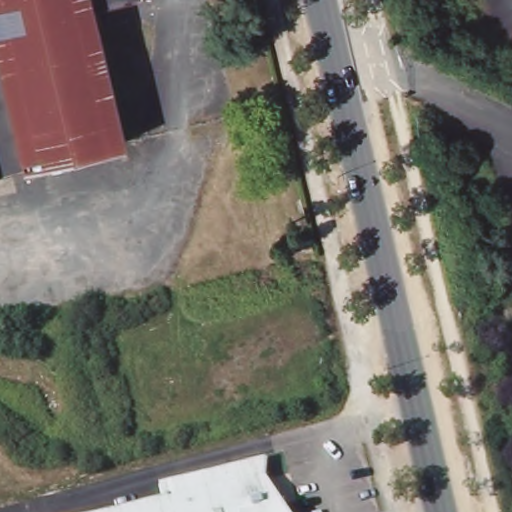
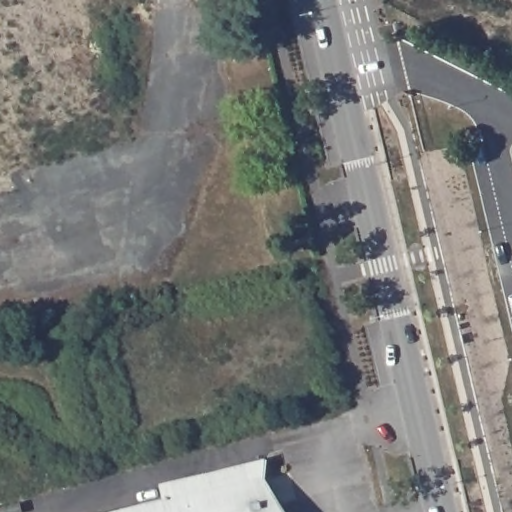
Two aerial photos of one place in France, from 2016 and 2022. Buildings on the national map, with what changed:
demolished [(94,3),(126,140),(0,169),(0,0),(110,0),(94,3)]
unchanged [(154,484),(263,457),(260,476),(276,502),(282,512),(98,512),(157,498),(154,484)]

